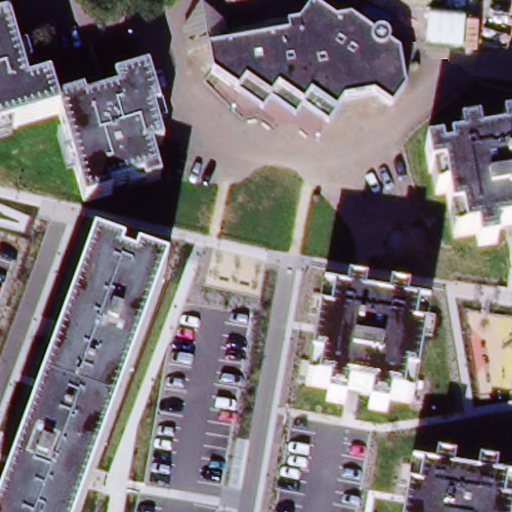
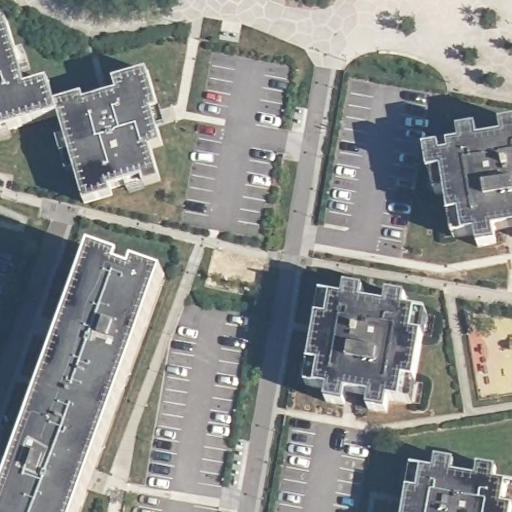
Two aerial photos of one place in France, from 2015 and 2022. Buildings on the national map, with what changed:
demolished [(234,35),(267,29),(269,37),(288,34),(287,26),(300,24),(305,16),(313,5),(322,11),(337,23),(343,27),(346,34),(352,38),(362,45),(363,45),(370,44),(376,49),(373,54),(368,60),(370,72),(373,91),(375,97),(343,103),(328,123),(303,106),(296,117),(271,99),(263,110),(241,94),(235,37),(234,35)]
unchanged [(8,23),(27,89),(49,83),(58,115),(0,133),(0,26),(8,23)]
demolished [(374,38),(375,38),(375,36),(376,36),(376,35),(377,35),(378,35),(378,34),(379,34),(380,34),(381,34),(382,34),(383,34),(384,34),(385,34),(385,35),(386,35),(387,35),(387,36),(388,36),(388,37),(389,38),(390,38),(390,39),(390,40),(390,41),(390,42),(390,43),(390,44),(390,45),(390,46),(389,47),(388,48),(387,49),(386,50),(385,50),(384,51),(382,51),(381,51),(380,51),(379,50),(377,50),(376,49),(375,47),(374,46),(373,44),(373,43),(373,42),(373,40),(374,39),(374,38)]
demolished [(235,37),(241,94),(212,73),(209,49),(226,46),(225,36),(234,35),(235,37)]
unchanged [(118,92),(115,81),(147,72),(159,110),(153,111),(162,146),(151,149),(160,181),(145,185),(144,179),(111,188),(112,195),(86,201),(58,103),(83,96),(85,101),(118,92)]
unchanged [(448,194),(438,195),(434,173),(431,174),(427,151),(441,148),(450,147),(463,144),(461,133),(478,130),(480,142),(505,137),(503,126),(512,125),(512,229),(495,232),(496,244),(480,246),(479,234),(465,236),(455,238),(451,216),(448,194)]
unchanged [(90,253),(163,280),(79,512),(0,512),(0,501),(90,253)]
unchanged [(402,403),(388,401),(386,412),(370,409),(372,398),(346,394),(344,405),(327,402),(330,390),(317,388),(307,386),(310,364),(319,318),(322,297),(332,298),(345,300),(347,290),(364,292),(362,303),(388,308),(390,297),(407,300),(405,310),(417,313),(426,315),(423,337),(415,382),(411,405),(402,403)]
unchanged [(407,489),(411,467),(422,468),(435,471),(436,460),(453,462),(452,474),(477,478),(480,467),(496,470),(494,481),(507,483),(512,484),(512,507),(511,512),(403,512),(407,489)]

